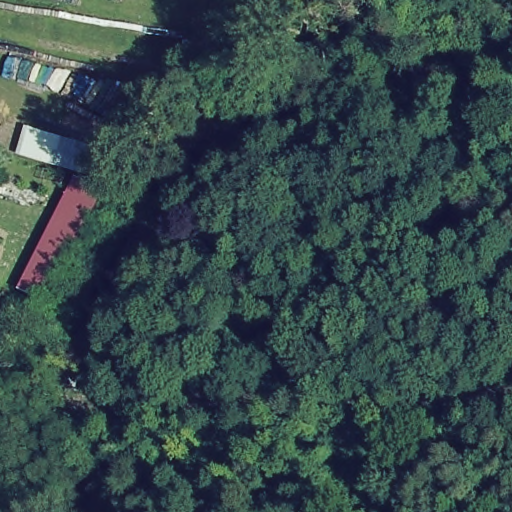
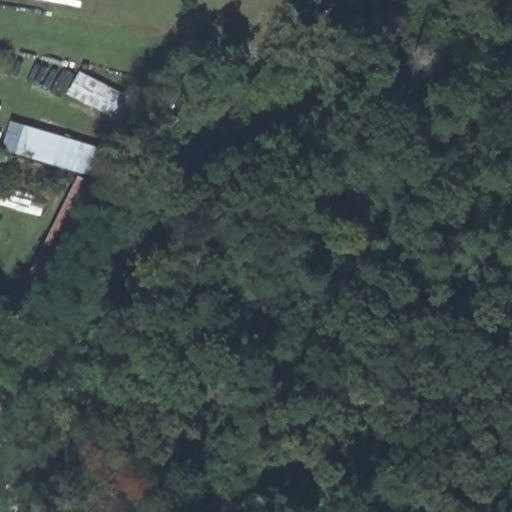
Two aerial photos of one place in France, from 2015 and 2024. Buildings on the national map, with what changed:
unchanged [(88,182),(108,190),(46,310),(15,293),(76,176),(15,157),(24,126),(99,148),(88,182)]

